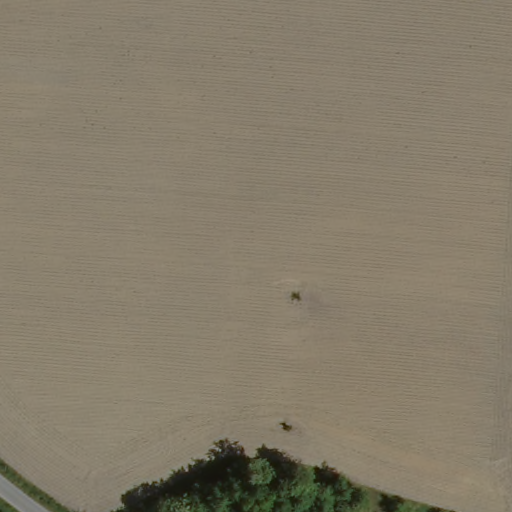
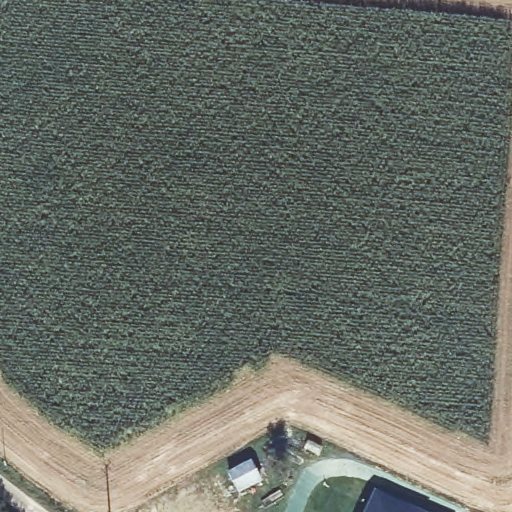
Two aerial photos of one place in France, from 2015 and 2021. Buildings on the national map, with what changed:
new [(376,490),(422,512),(367,512),(376,490)]

